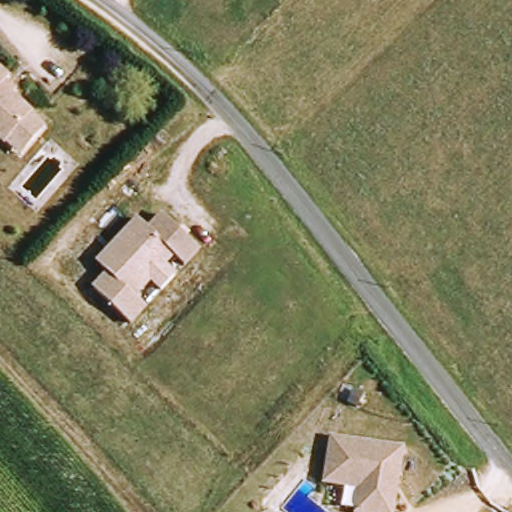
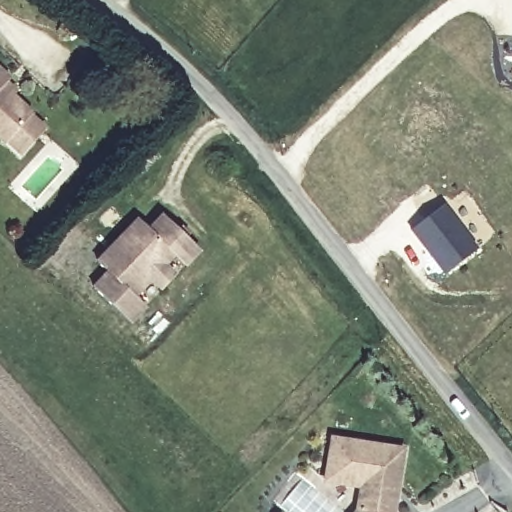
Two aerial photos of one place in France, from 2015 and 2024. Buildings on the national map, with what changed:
unchanged [(12,148),(0,138),(0,89),(0,72),(15,86),(10,89),(20,97),(15,102),(37,121),(51,134),(27,161),(12,148)]
new [(446,201),(480,246),(445,272),(410,228),(446,201)]
unchanged [(128,322),(93,286),(108,272),(97,261),(139,220),(148,231),(158,221),(163,216),(169,222),(200,251),(184,267),(144,306),(128,322)]
unchanged [(400,451),(390,512),(355,512),(358,487),(322,481),(327,454),(329,440),(340,441),(400,451)]

